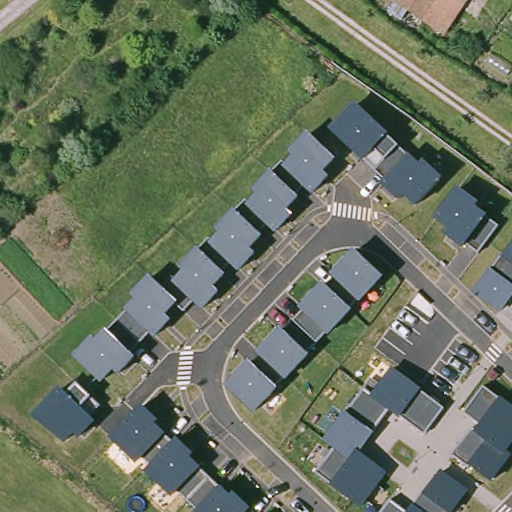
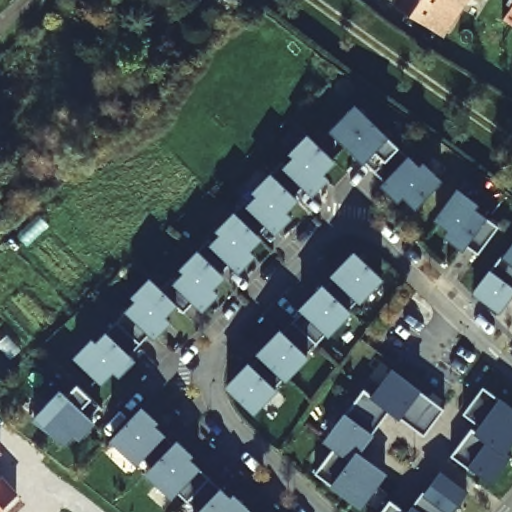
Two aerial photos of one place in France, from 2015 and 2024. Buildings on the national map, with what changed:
unchanged [(443,35),(393,2),(394,0),(466,0),(443,35)]
unchanged [(313,73),(322,82),(309,95),(300,85),(313,73)]
unchanged [(420,165),(424,160),(444,178),(416,208),(404,196),(399,200),(380,183),(383,179),(329,129),(355,103),(420,165)]
unchanged [(336,160),(324,172),(329,178),(312,196),(306,190),(286,212),(291,217),(276,234),(272,230),(251,250),(256,254),(238,273),(233,268),(216,287),(221,292),(203,310),(194,302),(183,314),(176,307),(167,317),(171,320),(156,337),(152,333),(132,354),(137,359),(120,376),(114,370),(100,384),(73,357),(90,339),(95,343),(136,300),(131,295),(149,276),(161,286),(308,132),(336,160)]
unchanged [(479,203),(474,210),(498,226),(477,252),(467,245),(464,249),(443,235),(447,230),(431,219),(456,187),(479,203)]
unchanged [(501,315),(471,293),(512,238),(512,298),(501,315)]
unchanged [(384,278),(329,336),(326,334),(316,345),(292,321),(303,311),(300,307),(354,250),(384,278)]
unchanged [(311,356),(253,415),(223,387),(279,327),(311,356)]
unchanged [(444,408),(424,435),(391,410),(360,453),(388,473),(361,508),(316,474),(334,449),(325,442),(364,390),(371,396),(391,368),(444,408)]
unchanged [(68,393),(78,383),(101,406),(92,417),(98,423),(79,441),(73,436),(65,445),(31,417),(59,387),(68,393)]
unchanged [(478,422),(464,413),(484,385),(512,405),(512,446),(508,452),(512,455),(512,456),(492,484),(453,456),(478,422)]
unchanged [(255,512),(195,512),(197,511),(178,492),(171,499),(144,472),(148,468),(141,460),(136,465),(109,439),(143,406),(255,512)]
new [(0,455),(0,449),(3,452),(0,455)]
unchanged [(452,512),(410,512),(440,470),(468,490),(452,512)]
new [(3,475),(19,494),(0,511),(0,474),(2,476),(3,475)]
unchanged [(404,512),(380,512),(388,501),(404,512)]

